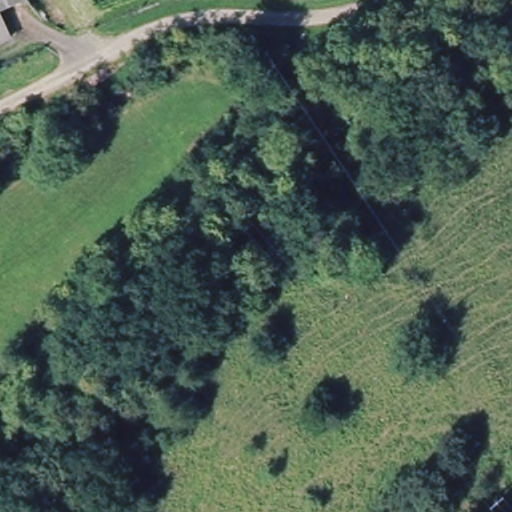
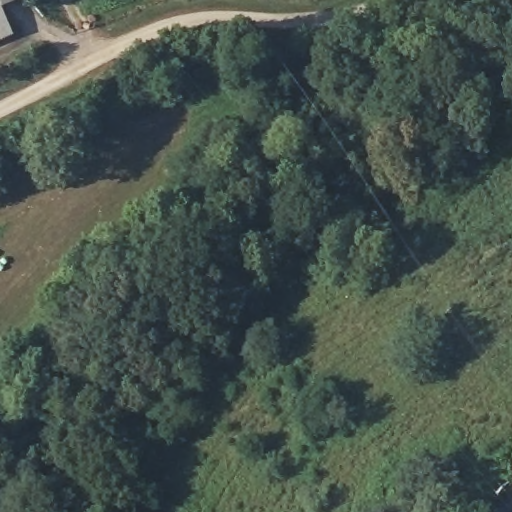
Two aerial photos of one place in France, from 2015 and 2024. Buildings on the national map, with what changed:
unchanged [(0,1),(0,0),(2,0),(0,1)]
unchanged [(10,29),(0,34),(0,8),(10,29)]

